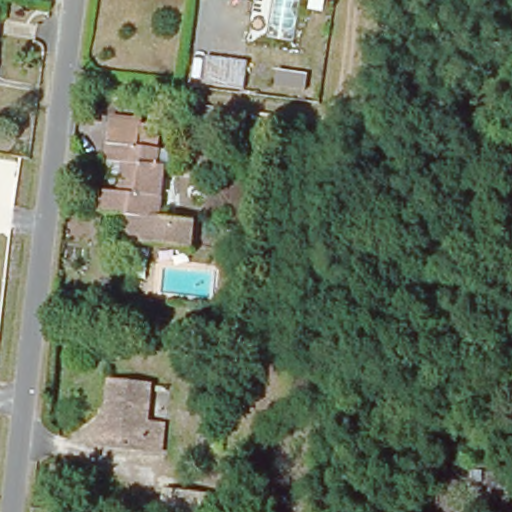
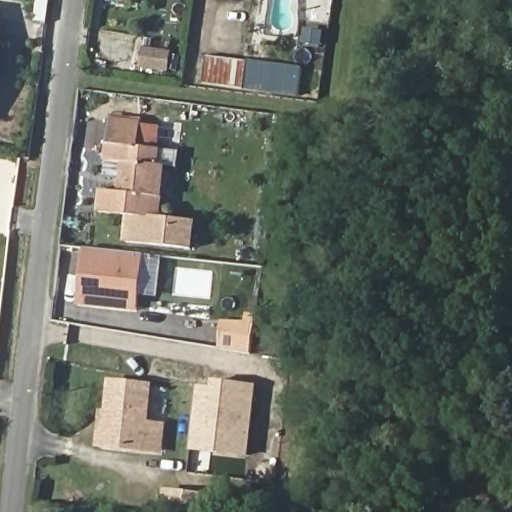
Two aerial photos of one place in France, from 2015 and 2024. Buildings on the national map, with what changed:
unchanged [(226,86),(216,85),(207,83),(211,54),(220,55),(230,56),(249,59),(244,88),(226,86)]
unchanged [(116,109),(150,112),(147,143),(113,138),(116,109)]
unchanged [(160,161),(171,163),(164,216),(194,220),(190,247),(127,239),(131,213),(104,210),(108,185),(125,187),(129,157),(111,155),(113,138),(147,143),(162,145),(160,161)]
new [(84,250),(141,256),(135,312),(78,306),(84,250)]
demolished [(168,323),(166,335),(141,331),(143,319),(168,323)]
new [(223,323),(245,326),(246,319),(254,320),(249,353),(220,349),(223,323)]
unchanged [(147,447),(108,443),(97,442),(101,408),(112,409),(115,378),(154,382),(150,418),(167,420),(166,438),(164,449),(147,447)]
new [(198,386),(211,388),(212,381),(258,386),(250,456),(191,450),(198,386)]
unchanged [(171,512),(156,510),(157,493),(198,497),(197,512),(171,512)]

